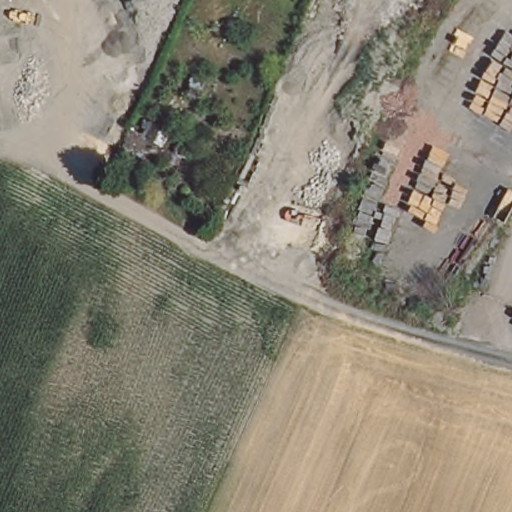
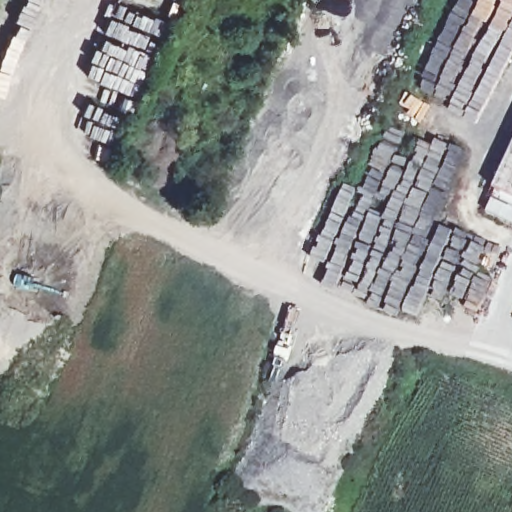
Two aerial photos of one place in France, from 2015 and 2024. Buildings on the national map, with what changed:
new [(486,211),(496,190),(494,189),(512,150),(512,223),(486,211)]

